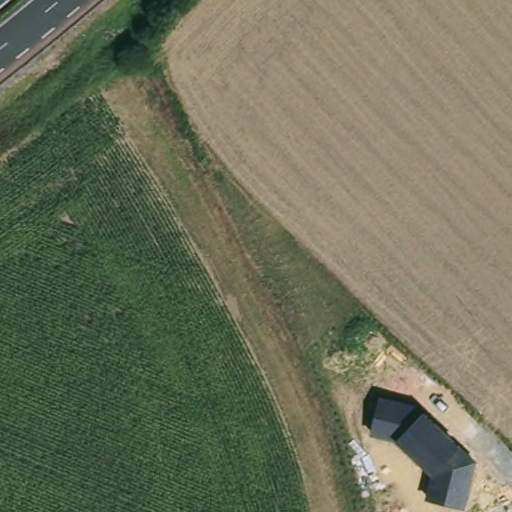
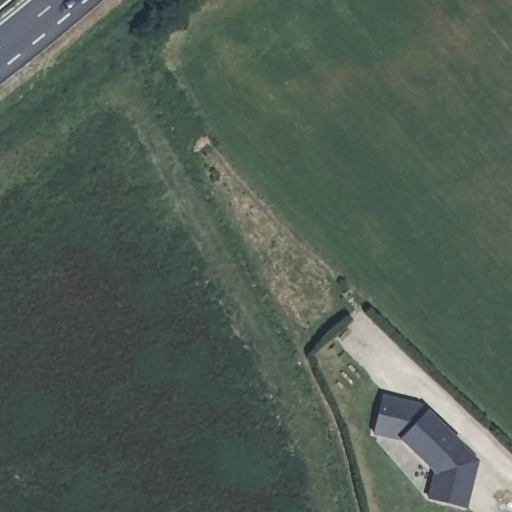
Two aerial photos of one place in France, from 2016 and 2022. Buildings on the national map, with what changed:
unchanged [(380,399),(413,406),(457,446),(476,462),(465,510),(430,502),(436,479),(398,441),(373,435),(380,399)]

